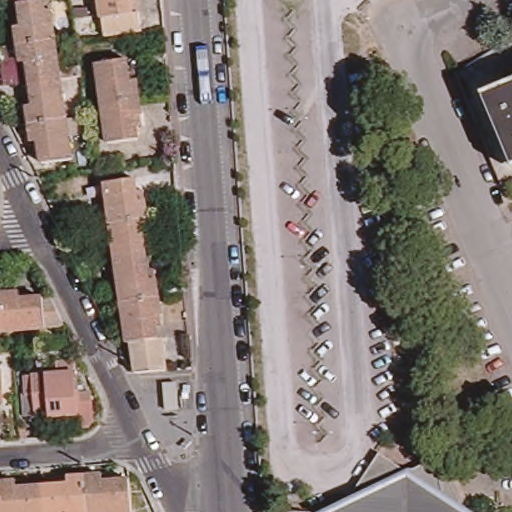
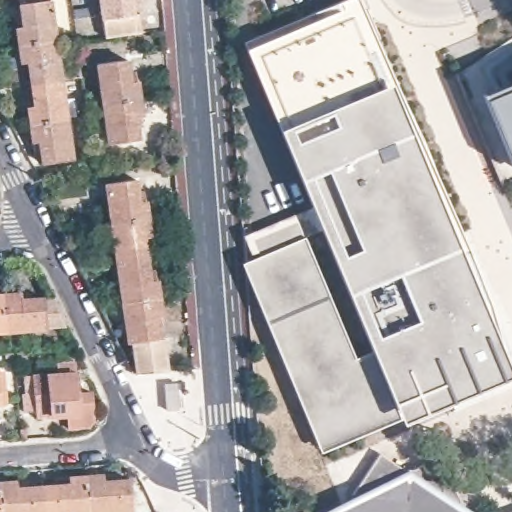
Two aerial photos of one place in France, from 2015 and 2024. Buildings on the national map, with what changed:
unchanged [(27,6),(26,0),(57,0),(57,2),(63,44),(27,48),(25,32),(30,31),(27,6)]
unchanged [(103,0),(138,0),(141,16),(106,21),(104,1),(103,0)]
new [(304,232),(354,356),(369,348),(332,264),(343,260),(249,29),(319,0),(351,0),(401,131),(472,303),(491,295),(512,354),(512,369),(319,450),(239,260),(247,256),(244,248),(253,245),(250,235),(296,217),(304,232)]
unchanged [(35,62),(29,62),(27,48),(63,44),(68,82),(38,86),(35,62)]
unchanged [(94,65),(108,63),(138,60),(141,85),(148,83),(150,98),(114,103),(114,101),(99,104),(94,65)]
unchanged [(36,111),(41,110),(38,86),(68,82),(74,122),(38,127),(36,111)]
unchanged [(512,86),(512,152),(489,96),(512,86)]
unchanged [(150,98),(153,114),(145,115),(149,139),(119,142),(114,103),(150,98)]
unchanged [(74,122),(80,162),(50,166),(46,142),(40,142),(38,127),(74,122)]
unchanged [(108,176),(137,172),(141,198),(147,197),(149,212),(114,217),(108,176)]
unchanged [(114,217),(149,212),(152,229),(146,230),(149,252),(119,256),(114,217)]
unchanged [(119,256),(149,252),(152,277),(158,277),(160,292),(125,296),(119,256)]
unchanged [(138,365),(134,335),(131,336),(125,296),(160,292),(162,306),(165,331),(169,363),(138,365)]
unchanged [(21,297),(21,303),(45,302),(54,302),(68,330),(46,331),(7,333),(4,298),(21,297)]
unchanged [(7,333),(0,334),(0,298),(4,298),(7,333)]
unchanged [(67,360),(68,373),(69,390),(85,390),(87,421),(82,427),(60,428),(59,412),(19,415),(18,415),(17,414),(17,413),(16,412),(15,393),(15,392),(16,391),(17,391),(17,376),(50,375),(50,360),(67,360)]
unchanged [(5,366),(6,366),(7,366),(7,367),(8,368),(10,396),(0,397),(0,367),(5,366)]
unchanged [(188,409),(172,410),(170,383),(187,382),(188,409)]
unchanged [(372,455),(395,471),(405,471),(431,460),(454,505),(465,512),(334,512),(372,455)]
unchanged [(93,479),(109,478),(110,485),(136,483),(138,512),(95,512),(93,479)]
unchanged [(50,488),(78,486),(77,480),(93,479),(95,512),(52,512),(50,488)]
unchanged [(6,485),(24,483),(25,490),(50,488),(52,512),(7,512),(6,485)]
unchanged [(6,485),(7,512),(0,512),(0,485),(6,485)]

